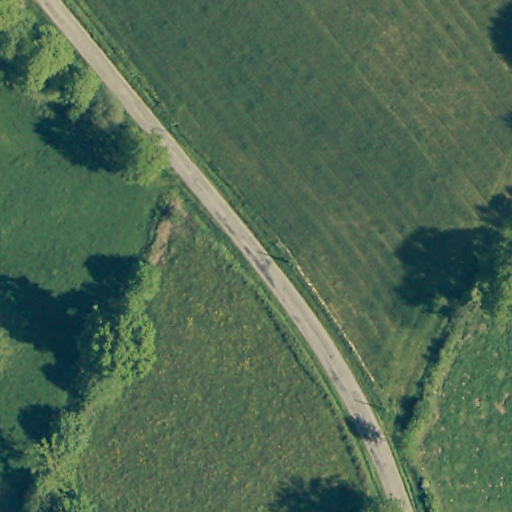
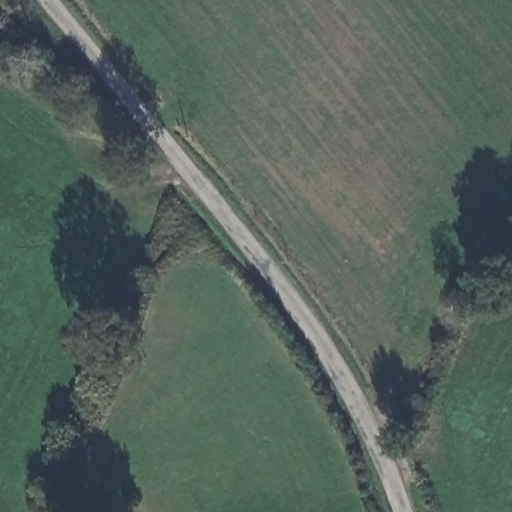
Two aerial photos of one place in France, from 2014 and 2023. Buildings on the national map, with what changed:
[]

